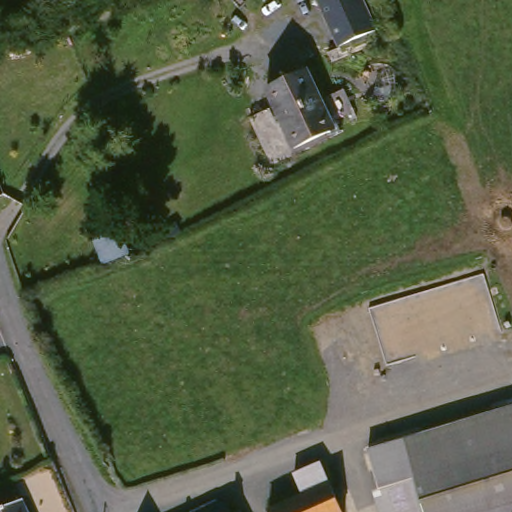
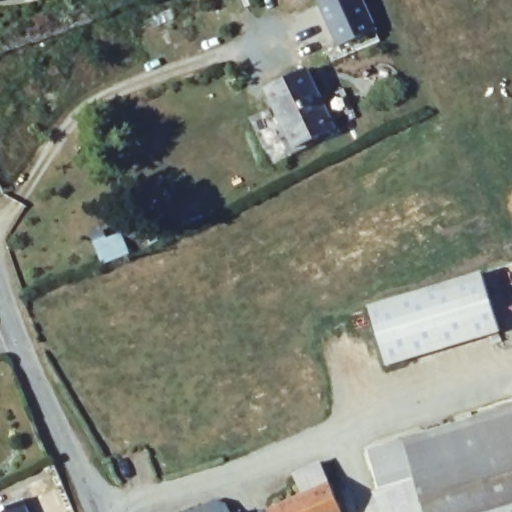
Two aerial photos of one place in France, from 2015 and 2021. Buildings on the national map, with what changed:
unchanged [(372,31),(336,46),(314,0),(358,0),(372,31)]
unchanged [(341,126),(300,143),(298,140),(276,86),(317,70),(336,115),(341,126)]
unchanged [(127,223),(136,244),(165,234),(174,249),(140,261),(136,256),(108,265),(99,234),(127,223)]
new [(480,279),(498,336),(383,372),(365,315),(480,279)]
unchanged [(455,430),(512,411),(512,512),(438,512),(415,444),(455,430)]
unchanged [(438,512),(399,512),(380,456),(380,455),(415,444),(438,512)]
demolished [(281,461),(290,481),(265,490),(257,469),(281,461)]
unchanged [(329,470),(345,507),(333,512),(274,512),(267,497),(291,486),(329,470)]
unchanged [(230,497),(238,512),(197,512),(201,510),(230,497)]
unchanged [(0,512),(15,503),(21,512),(0,512)]
unchanged [(249,512),(248,512),(249,511),(249,512)]

